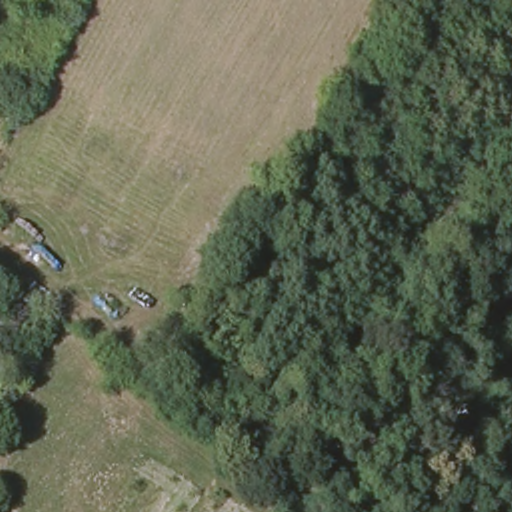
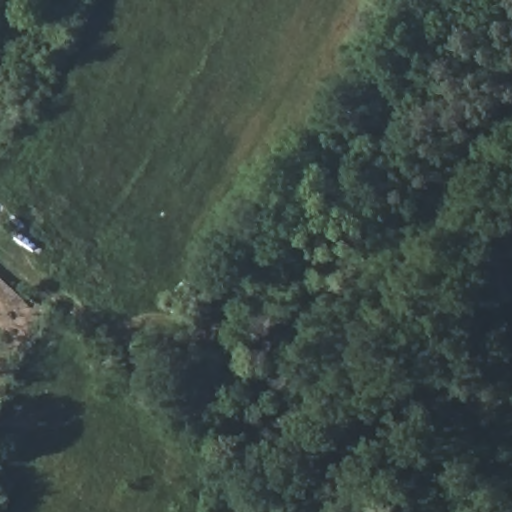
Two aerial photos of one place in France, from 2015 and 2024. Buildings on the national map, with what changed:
unchanged [(0,269),(5,272),(0,280),(0,269)]

